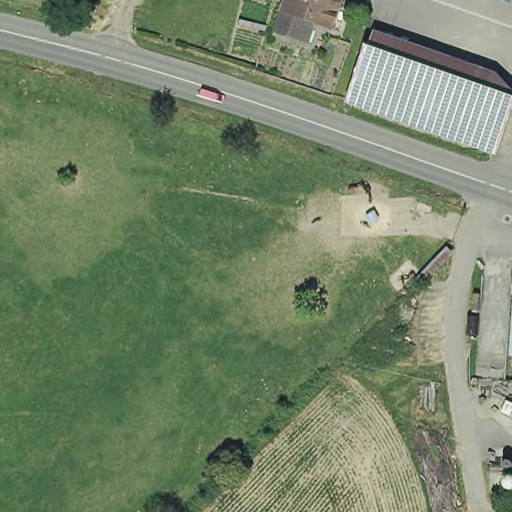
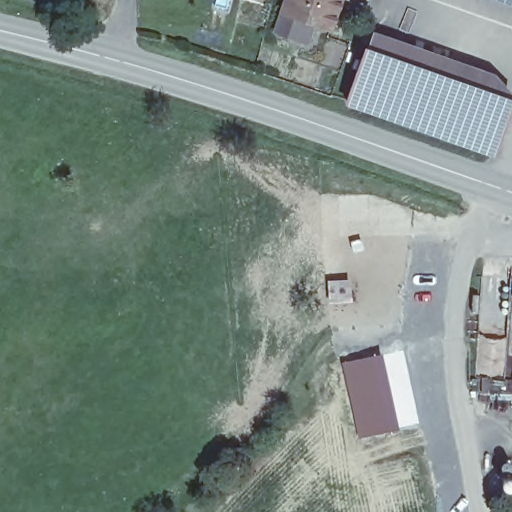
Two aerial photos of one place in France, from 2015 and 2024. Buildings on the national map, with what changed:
unchanged [(47,5),(49,0),(63,0),(60,8),(47,5)]
unchanged [(283,0),(339,0),(329,26),(312,19),(305,38),(273,26),(280,7),(283,0)]
unchanged [(377,103),(352,94),(370,42),(395,51),(377,103)]
unchanged [(493,84),(476,136),(377,103),(395,51),(493,84)]
unchanged [(512,91),(512,107),(499,143),(476,136),(493,84),(512,91)]
new [(404,348),(420,424),(357,438),(340,360),(404,348)]

